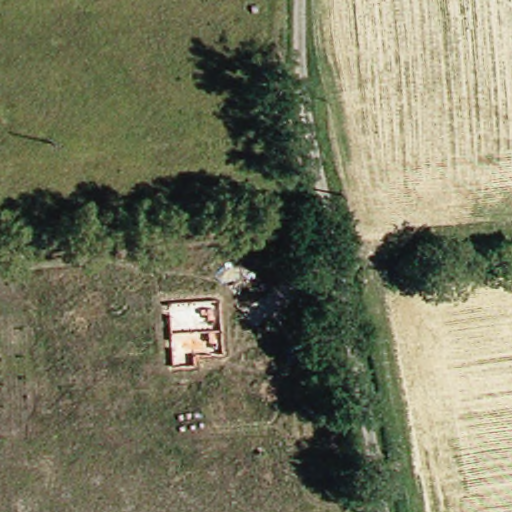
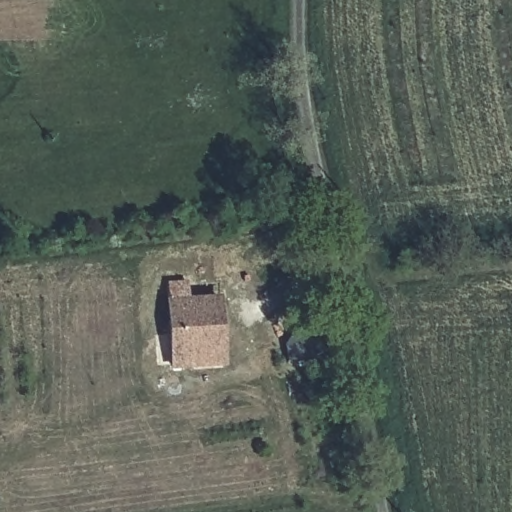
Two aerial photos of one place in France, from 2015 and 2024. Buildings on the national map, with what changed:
new [(223,296),(226,356),(195,357),(195,372),(169,373),(165,300),(223,296)]

